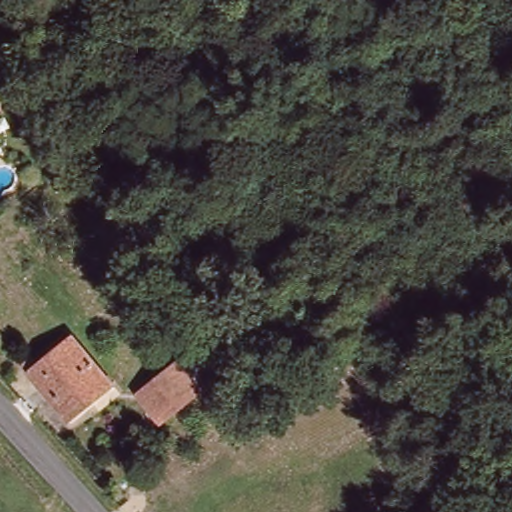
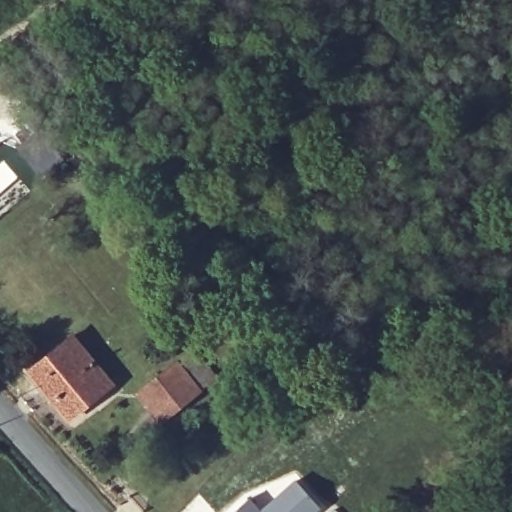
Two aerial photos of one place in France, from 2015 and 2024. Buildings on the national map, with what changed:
unchanged [(107,394),(66,425),(23,367),(31,362),(37,370),(70,345),(107,394)]
unchanged [(135,397),(175,365),(189,353),(212,384),(196,396),(157,426),(135,397)]
new [(260,509),(295,480),(321,508),(316,512),(234,512),(250,498),(260,509)]

